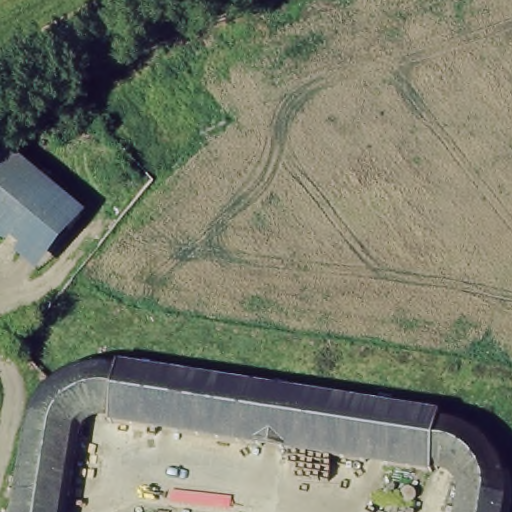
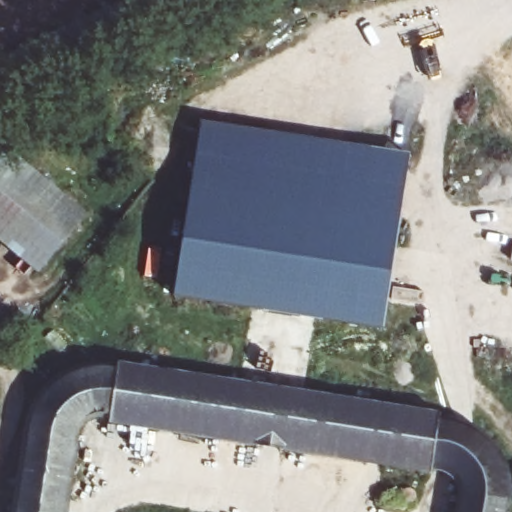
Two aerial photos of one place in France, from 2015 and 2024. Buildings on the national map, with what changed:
new [(198,118),(409,152),(398,217),(188,182),(198,118)]
unchanged [(14,276),(0,262),(0,158),(18,141),(84,202),(14,276)]
new [(188,182),(398,217),(381,327),(170,293),(188,182)]
unchanged [(478,426),(490,440),(508,473),(508,488),(504,512),(447,512),(451,489),(449,480),(435,470),(431,468),(102,420),(89,424),(79,436),(69,512),(10,512),(21,407),(39,384),(57,368),(77,361),(94,359),(113,360),(451,411),(478,426)]

